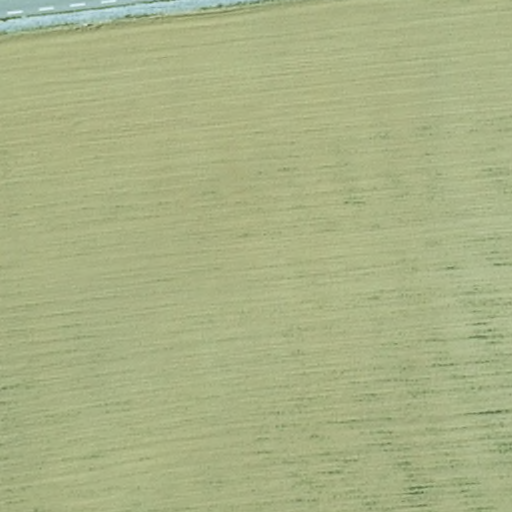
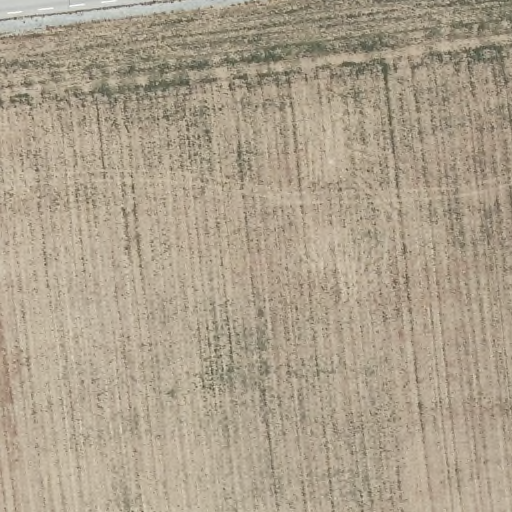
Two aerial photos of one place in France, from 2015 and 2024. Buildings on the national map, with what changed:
[]

